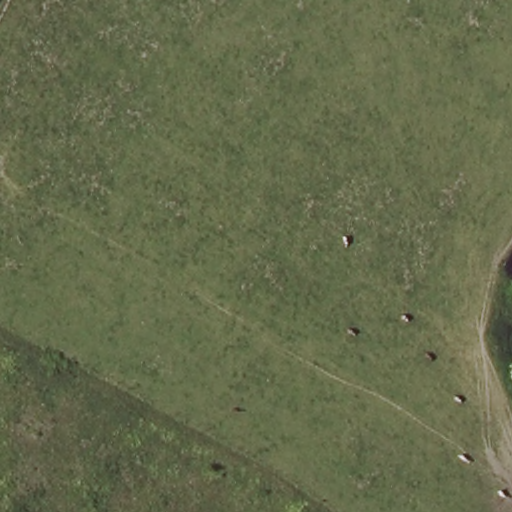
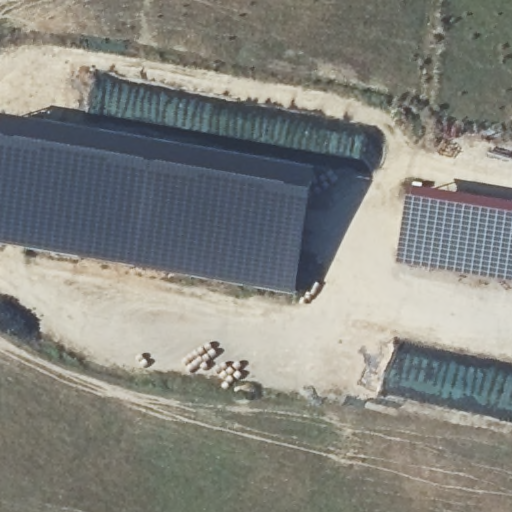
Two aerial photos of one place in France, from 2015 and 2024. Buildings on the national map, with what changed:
new [(315,177),(294,298),(0,248),(0,121),(315,177)]
new [(411,190),(512,208),(512,288),(448,276),(401,270),(405,222),(411,190)]

